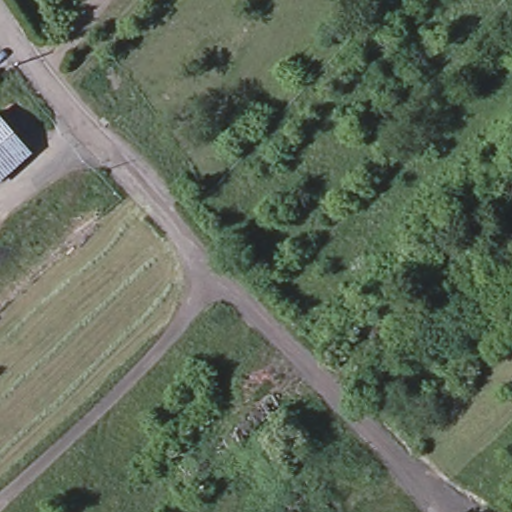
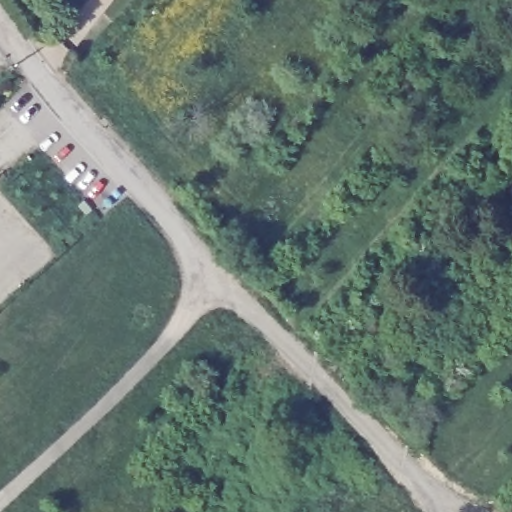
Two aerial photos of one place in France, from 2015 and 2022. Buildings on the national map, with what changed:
demolished [(0,180),(0,121),(28,155),(0,180)]

